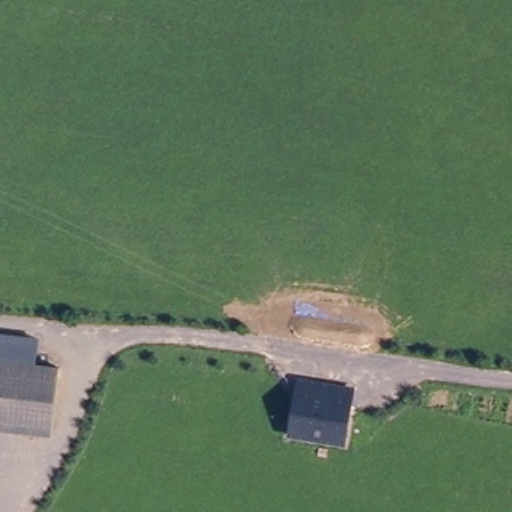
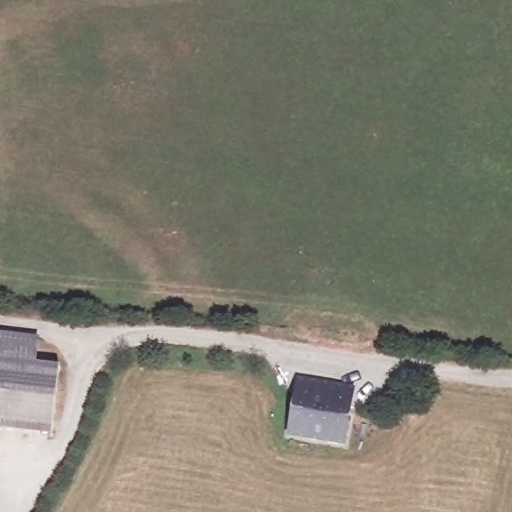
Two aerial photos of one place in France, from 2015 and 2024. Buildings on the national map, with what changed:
unchanged [(37,375),(0,371),(0,344),(41,349),(37,375)]
unchanged [(62,378),(53,446),(0,439),(0,371),(37,375),(62,378)]
unchanged [(369,392),(359,446),(305,436),(315,382),(369,392)]

